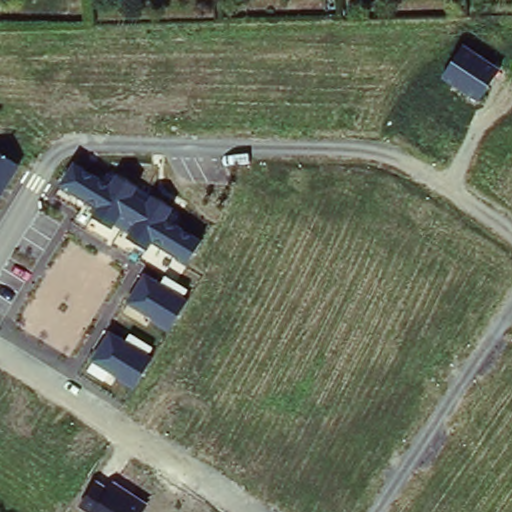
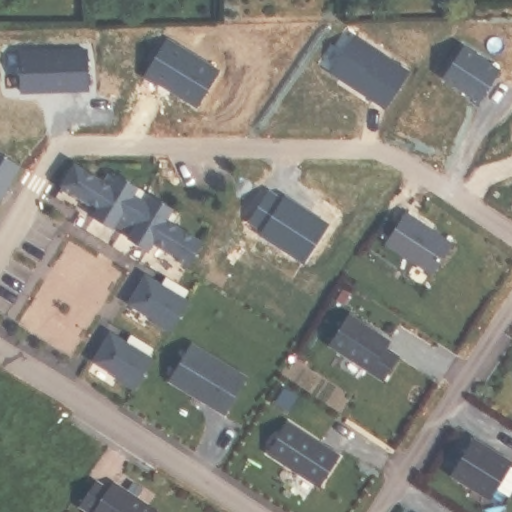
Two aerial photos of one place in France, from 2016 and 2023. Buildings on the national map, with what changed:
new [(410,71),(384,106),(328,64),(353,30),(410,71)]
unchanged [(480,101),(442,78),(463,43),(500,68),(480,101)]
new [(81,53),(81,90),(15,89),(17,52),(81,53)]
unchanged [(0,152),(18,164),(0,195),(0,152)]
unchanged [(186,264),(152,242),(147,250),(92,217),(97,209),(59,187),(73,160),(109,181),(113,174),(174,212),(168,220),(201,239),(186,264)]
new [(271,192),(325,229),(302,263),(247,228),(271,192)]
new [(403,217),(450,248),(429,280),(383,250),(403,217)]
unchanged [(167,333),(150,323),(153,318),(126,303),(142,272),(187,299),(167,333)]
new [(350,317),(403,348),(382,381),(330,350),(350,317)]
unchanged [(134,386),(91,361),(108,330),(152,355),(134,386)]
new [(188,347),(243,381),(222,418),(168,384),(188,347)]
new [(290,419),(342,452),(318,485),(269,453),(290,419)]
new [(475,440),(512,463),(512,465),(488,498),(451,474),(475,440)]
unchanged [(143,512),(88,512),(79,507),(95,480),(108,489),(112,482),(148,505),(143,512)]

